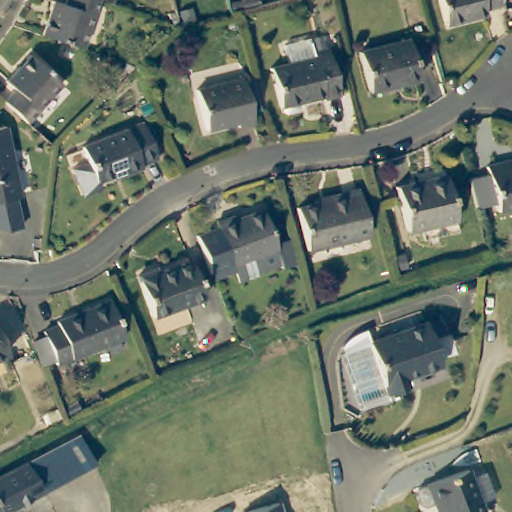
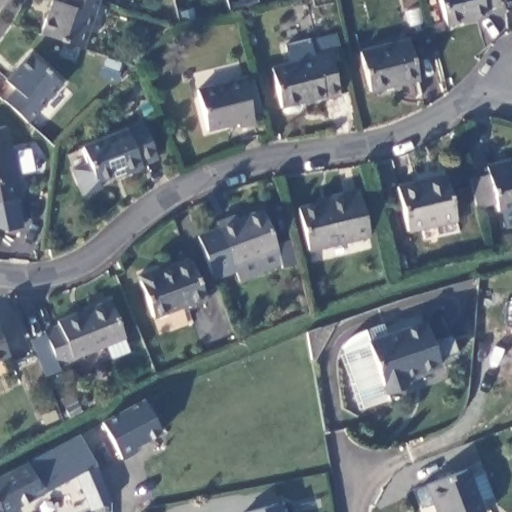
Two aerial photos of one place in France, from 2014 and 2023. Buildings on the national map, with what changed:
unchanged [(53,0),(63,4),(64,0),(99,0),(83,49),(41,35),(53,0)]
unchanged [(501,5),(484,9),(486,15),(446,24),(441,0),(499,0),(501,5)]
unchanged [(370,91),(361,52),(409,40),(417,79),(370,91)]
unchanged [(289,49),(315,43),(319,57),(334,54),(345,100),(329,105),(329,101),(285,110),(277,74),(294,69),(289,49)]
unchanged [(14,89),(6,80),(30,55),(61,84),(27,123),(4,101),(14,89)]
unchanged [(254,122),(239,126),(238,122),(208,130),(198,91),(243,79),(254,122)]
unchanged [(101,184),(84,190),(74,165),(90,159),(84,142),(144,119),(158,154),(141,160),(142,162),(126,169),(125,166),(99,176),(101,184)]
unchanged [(15,194),(21,224),(4,227),(0,225),(0,124),(6,122),(20,193),(15,194)]
unchanged [(479,179),(499,174),(497,166),(512,163),(512,209),(508,210),(505,204),(487,208),(482,190),(479,179)]
unchanged [(457,219),(406,231),(397,187),(447,175),(457,219)]
unchanged [(343,196),(343,194),(358,190),(369,235),(308,250),(298,208),(343,196)]
unchanged [(269,231),(284,227),(285,235),(292,256),(294,266),(280,270),(279,269),(256,275),(256,277),(234,282),(230,265),(208,271),(203,256),(192,228),(217,221),(215,216),(233,212),(234,215),(263,207),(269,231)]
unchanged [(189,261),(204,297),(154,317),(138,276),(154,270),(155,274),(189,261)]
unchanged [(40,343),(53,338),(49,331),(65,325),(64,322),(114,301),(129,336),(63,364),(59,357),(48,362),(40,343)]
unchanged [(400,379),(404,388),(382,396),(364,344),(420,323),(436,366),(400,379)]
unchanged [(0,361),(0,325),(14,355),(0,361)]
new [(161,435),(136,449),(137,452),(122,460),(100,421),(143,398),(161,435)]
unchanged [(28,467),(80,439),(96,471),(45,499),(28,467)]
unchanged [(22,512),(0,512),(0,482),(28,467),(45,499),(22,512)]
unchanged [(426,505),(417,507),(411,495),(412,489),(422,485),(421,482),(459,468),(461,475),(474,469),(484,494),(471,499),(477,512),(432,512),(431,507),(426,505)]
unchanged [(110,501),(88,511),(76,482),(96,471),(110,501)]
unchanged [(280,512),(246,512),(278,503),(280,512)]

